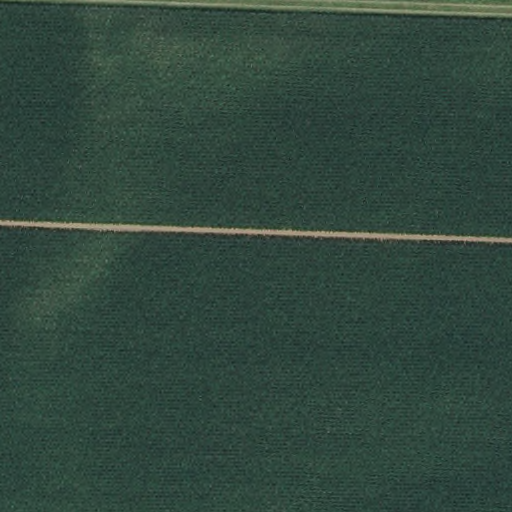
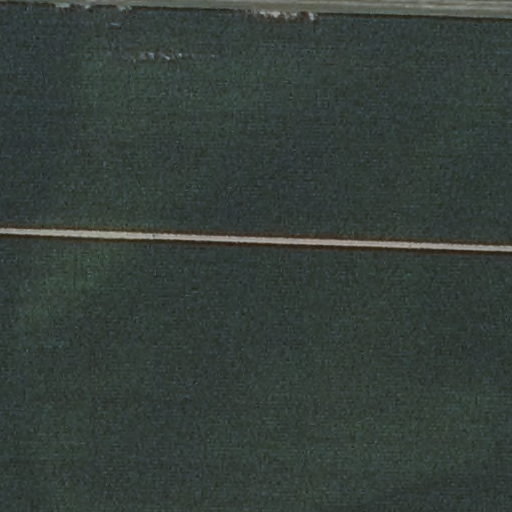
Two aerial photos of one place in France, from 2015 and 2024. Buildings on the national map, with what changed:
[]

